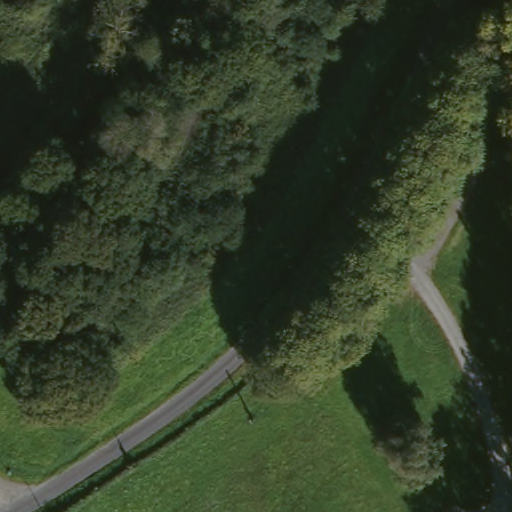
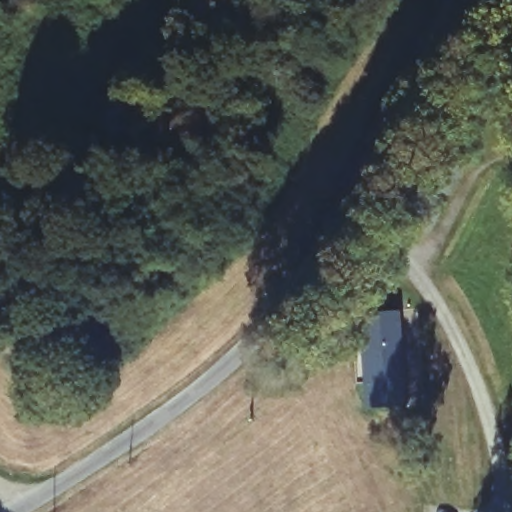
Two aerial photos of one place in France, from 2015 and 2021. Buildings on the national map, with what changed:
unchanged [(424,140),(439,148),(412,204),(396,196),(424,140)]
new [(367,410),(361,313),(402,310),(409,405),(367,410)]

